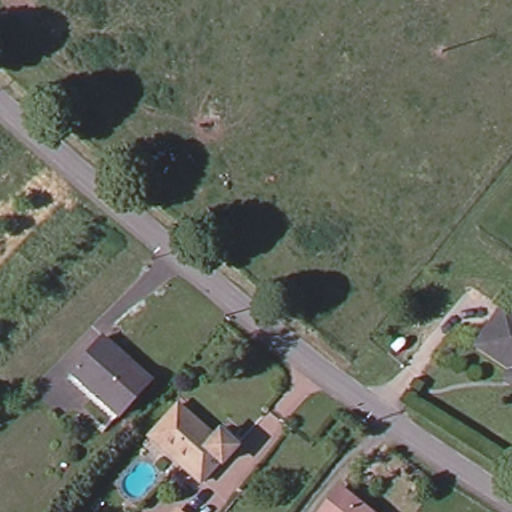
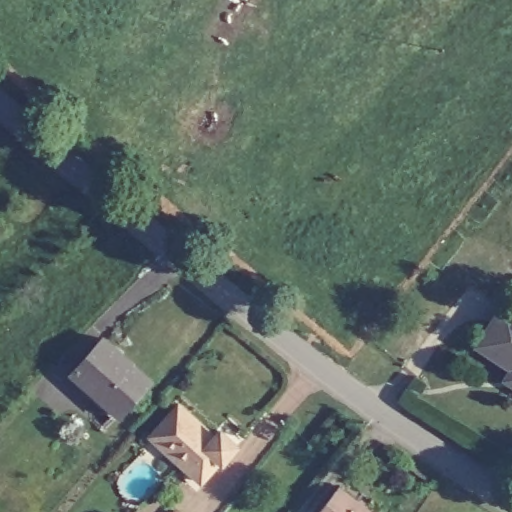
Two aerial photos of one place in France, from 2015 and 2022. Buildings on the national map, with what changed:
unchanged [(478,345),(503,309),(512,315),(512,384),(504,378),(511,368),(478,345)]
unchanged [(68,375),(73,370),(102,337),(149,379),(120,412),(116,417),(68,375)]
unchanged [(209,433),(214,428),(232,443),(218,459),(215,457),(197,479),(141,432),(169,399),(209,433)]
unchanged [(349,499),(351,496),(371,512),(312,512),(333,486),(349,499)]
unchanged [(172,505),(179,512),(166,512),(172,505)]

